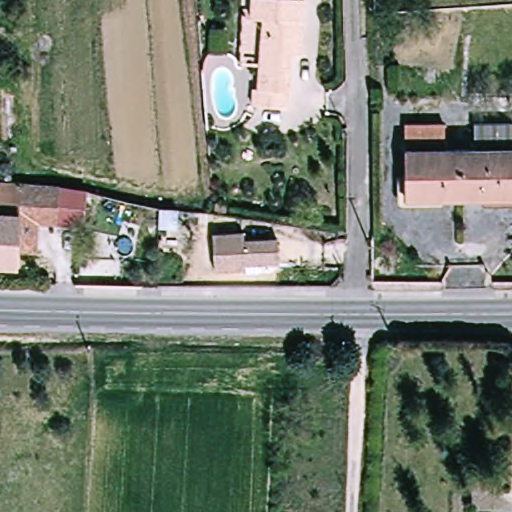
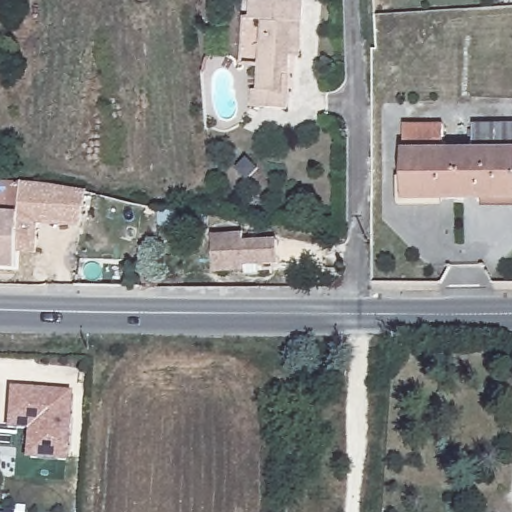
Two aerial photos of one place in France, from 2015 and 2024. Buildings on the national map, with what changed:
unchanged [(291,107),(258,105),(258,87),(264,88),(268,18),(255,17),(255,0),(308,0),(307,21),(305,55),(295,54),(294,73),(293,90),(291,107)]
unchanged [(464,201),(409,201),(410,126),(449,125),(450,153),(463,153),(464,201)]
unchanged [(479,153),(480,126),(512,126),(512,200),(464,201),(463,153),(479,153)]
unchanged [(0,183),(1,183),(0,207),(0,183)]
unchanged [(22,255),(21,268),(0,268),(0,207),(1,183),(21,184),(51,184),(91,192),(86,228),(60,226),(39,224),(38,255),(22,255)]
unchanged [(248,235),(248,242),(284,243),(283,266),(248,265),(248,271),(216,270),(218,235),(248,235)]
new [(8,385),(69,388),(65,456),(29,454),(31,426),(6,425),(8,385)]

